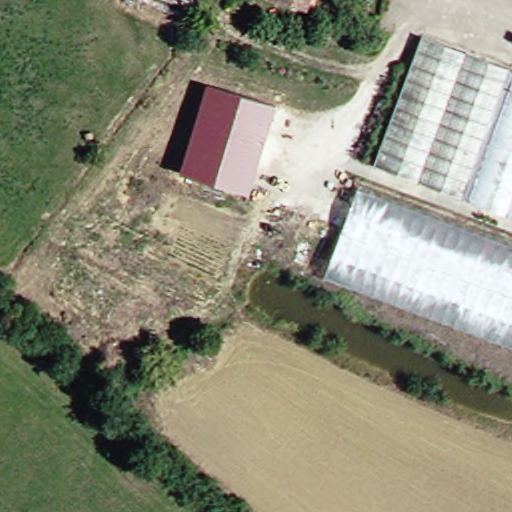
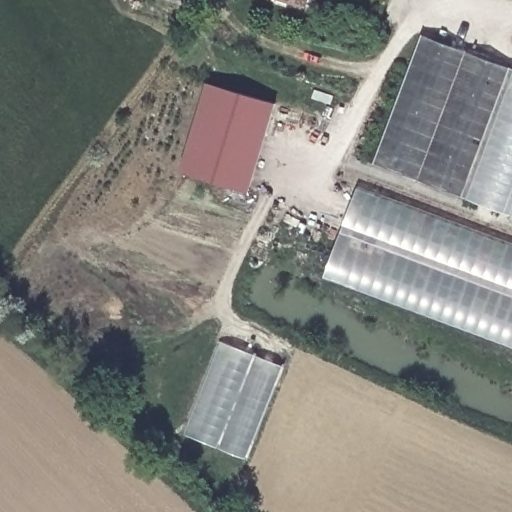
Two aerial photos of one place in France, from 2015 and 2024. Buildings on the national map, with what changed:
unchanged [(308,1),(307,0),(309,0),(308,1)]
unchanged [(428,41),(512,69),(512,214),(382,167),(428,41)]
unchanged [(273,103),(247,192),(180,173),(207,82),(273,103)]
unchanged [(512,348),(323,277),(356,188),(512,245),(512,348)]
new [(184,435),(220,342),(282,367),(246,460),(184,435)]

